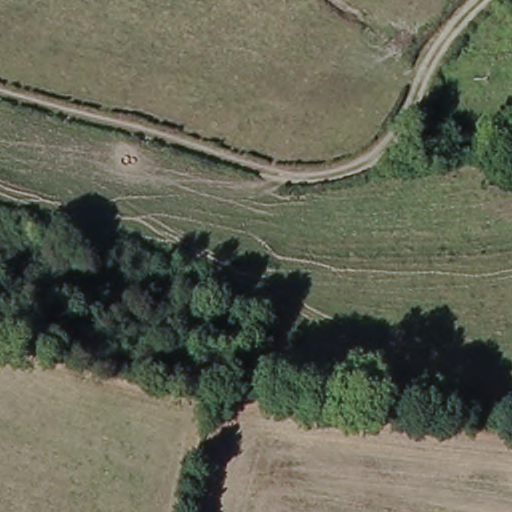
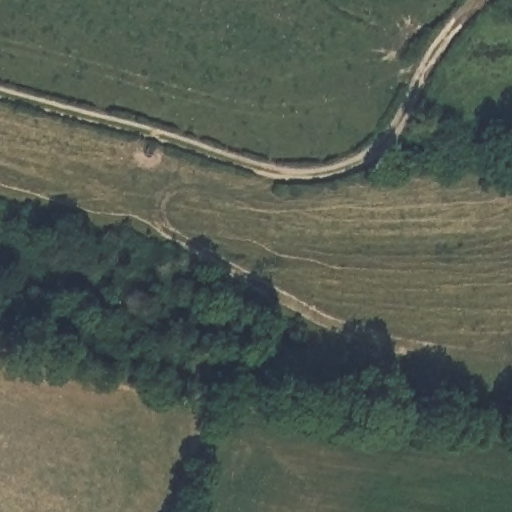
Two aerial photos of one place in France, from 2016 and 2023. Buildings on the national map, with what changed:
unchanged [(511,0),(512,0),(512,18),(502,15),(511,0)]

